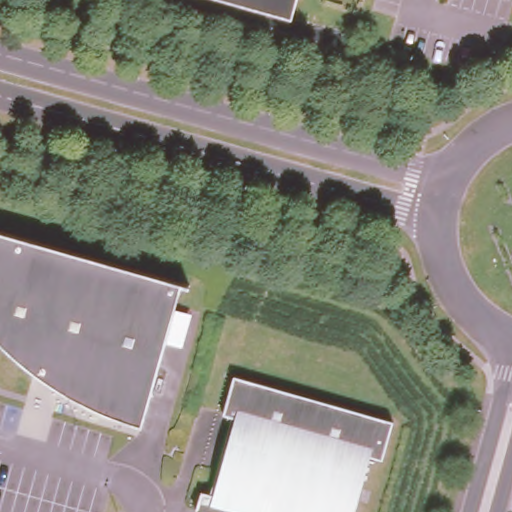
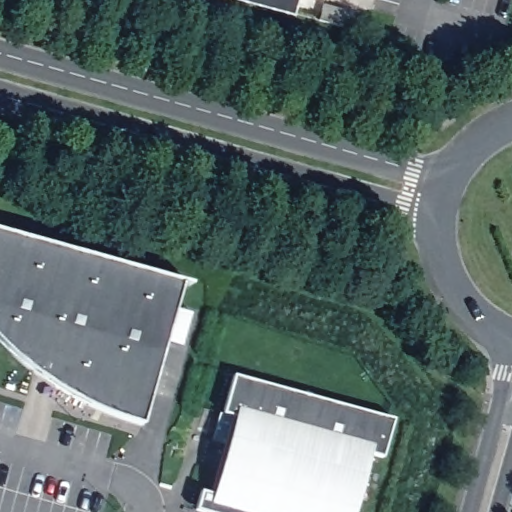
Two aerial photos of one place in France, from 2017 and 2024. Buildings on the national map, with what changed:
unchanged [(280,12),(237,0),(284,0),(280,12)]
unchanged [(105,413),(87,405),(70,397),(54,388),(41,380),(27,369),(16,360),(4,350),(0,347),(0,229),(189,282),(187,286),(179,283),(140,425),(121,420),(105,413)]
unchanged [(234,376),(394,419),(381,460),(368,456),(352,512),(199,512),(194,510),(200,491),(213,495),(234,418),(222,415),(234,376)]

